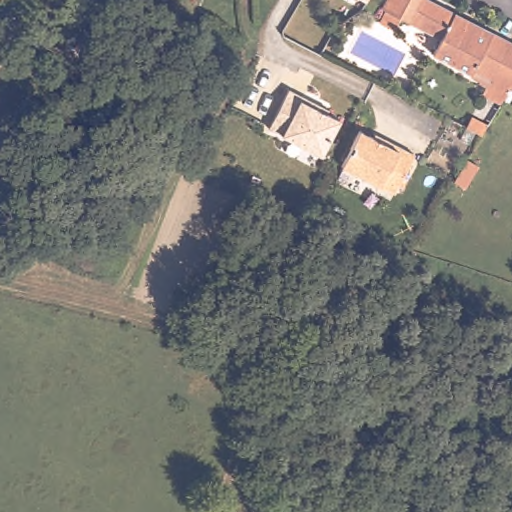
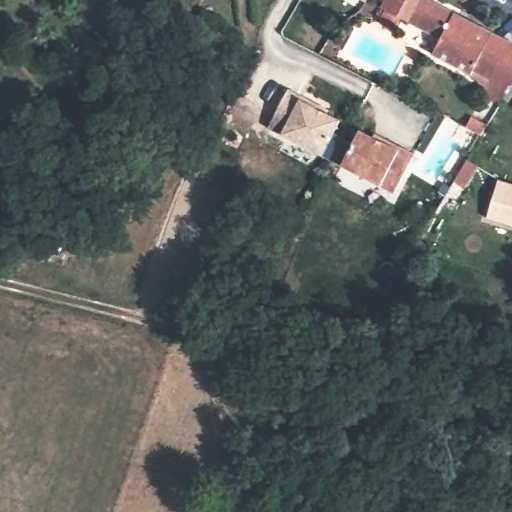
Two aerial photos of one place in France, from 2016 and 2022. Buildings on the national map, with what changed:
unchanged [(365,2),(361,0),(366,0),(365,2)]
unchanged [(470,73),(431,53),(440,36),(407,19),(401,15),(395,25),(382,18),(387,7),(384,5),(387,0),(436,0),(512,41),(512,88),(511,89),(503,103),(484,92),(492,79),(472,69),(470,73)]
unchanged [(317,104),(316,107),(339,120),(321,155),(268,127),(288,89),(317,104)]
unchanged [(358,130),(380,140),(382,142),(385,138),(413,154),(406,169),(394,192),(361,175),(341,165),(358,130)]
unchanged [(467,157),(477,163),(462,185),(453,179),(467,157)]
new [(512,183),(512,225),(485,218),(496,179),(512,183)]

